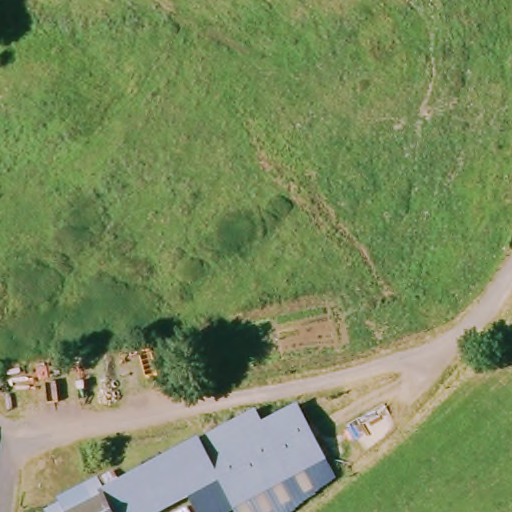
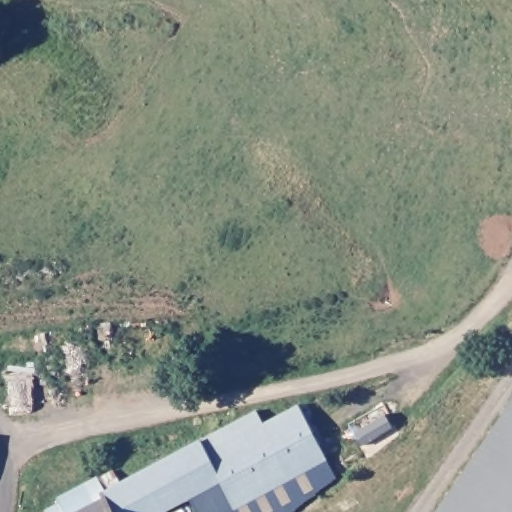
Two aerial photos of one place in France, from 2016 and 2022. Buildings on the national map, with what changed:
new [(433,512),(512,396),(512,512),(433,512)]
unchanged [(297,405),(334,482),(295,512),(193,512),(188,501),(167,512),(45,512),(59,505),(56,500),(97,479),(100,487),(253,411),(261,423),(297,405)]

